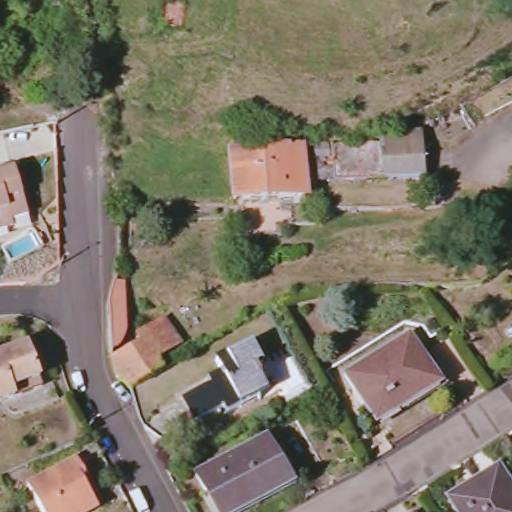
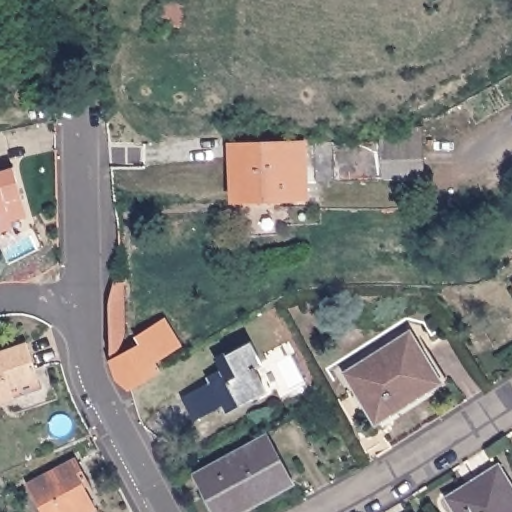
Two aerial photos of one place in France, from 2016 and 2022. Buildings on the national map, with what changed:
unchanged [(165,1),(186,7),(180,32),(156,27),(165,1)]
unchanged [(387,140),(388,127),(426,127),(422,180),(322,176),(322,141),(387,140)]
unchanged [(302,144),(305,195),(233,199),(230,148),(302,144)]
unchanged [(13,223),(15,229),(0,234),(0,171),(14,167),(23,197),(30,217),(13,223)]
unchanged [(122,282),(123,329),(122,335),(121,340),(120,343),(118,347),(108,349),(105,305),(111,281),(122,282)]
unchanged [(508,287),(512,284),(512,292),(508,287)]
unchanged [(134,345),(140,342),(136,336),(161,322),(175,345),(151,357),(158,366),(160,368),(128,387),(115,375),(110,356),(134,345)]
unchanged [(438,382),(378,418),(350,373),(411,336),(438,382)]
unchanged [(0,400),(0,349),(25,341),(41,386),(0,400)]
unchanged [(260,365),(255,368),(265,389),(254,394),(257,400),(226,417),(221,408),(195,422),(181,398),(221,377),(215,362),(248,343),(260,365)]
unchanged [(229,512),(218,512),(198,474),(265,438),(288,481),(229,512)]
unchanged [(88,475),(100,499),(75,512),(41,512),(26,482),(83,454),(93,472),(88,475)]
unchanged [(458,512),(448,497),(475,482),(473,477),(497,462),(512,486),(512,512),(458,512)]

